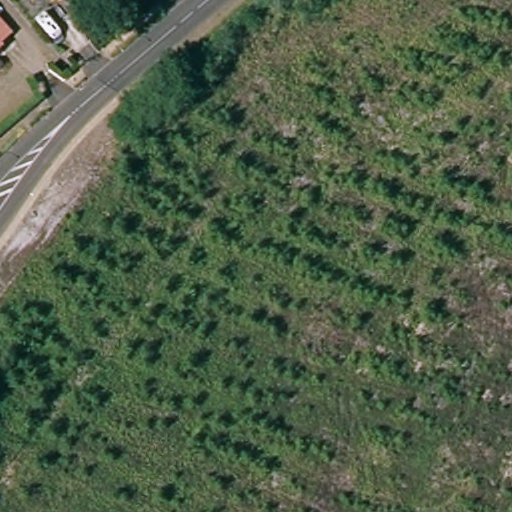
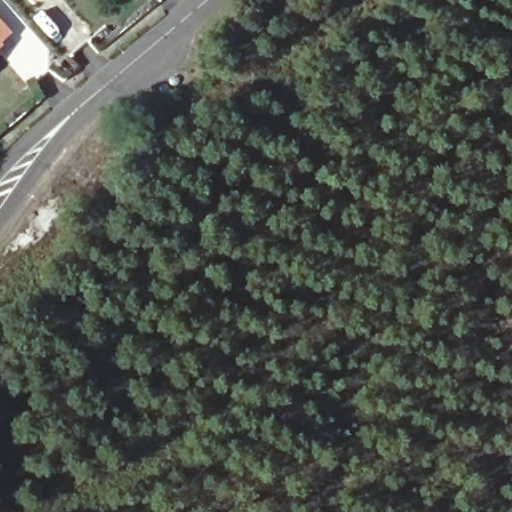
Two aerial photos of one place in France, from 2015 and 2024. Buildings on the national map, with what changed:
unchanged [(34,0),(39,0),(36,2),(34,0)]
unchanged [(0,40),(0,26),(6,35),(0,40)]
unchanged [(0,44),(4,47),(0,50),(0,44)]

